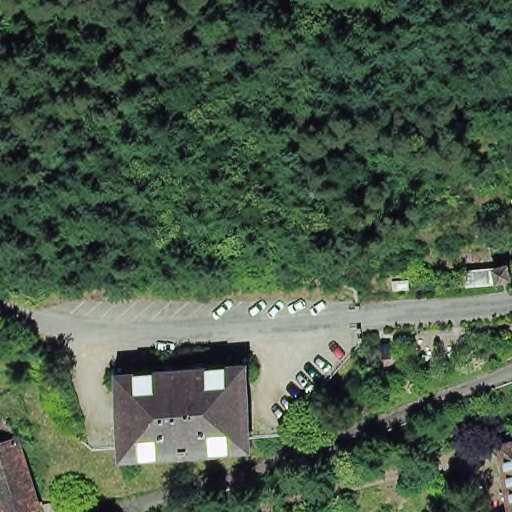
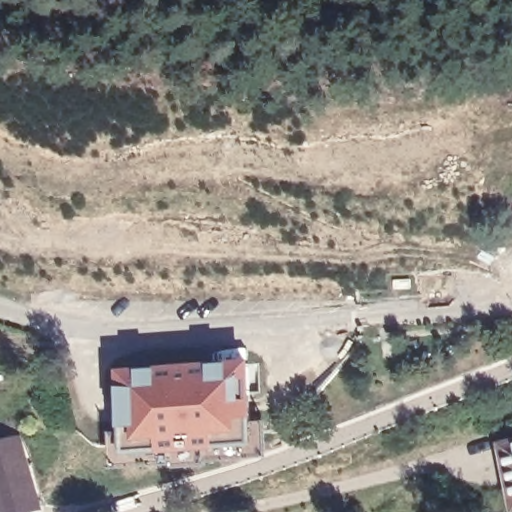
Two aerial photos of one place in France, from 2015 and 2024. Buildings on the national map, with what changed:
unchanged [(468,287),(467,273),(507,269),(508,282),(468,287)]
unchanged [(124,366),(247,358),(253,437),(129,445),(124,366)]
unchanged [(8,512),(0,488),(0,446),(7,444),(0,420),(14,417),(22,440),(43,507),(29,512),(8,512)]
unchanged [(512,447),(512,498),(501,450),(512,447)]

